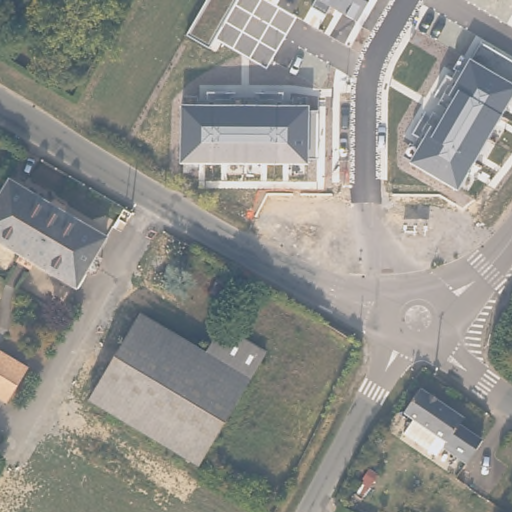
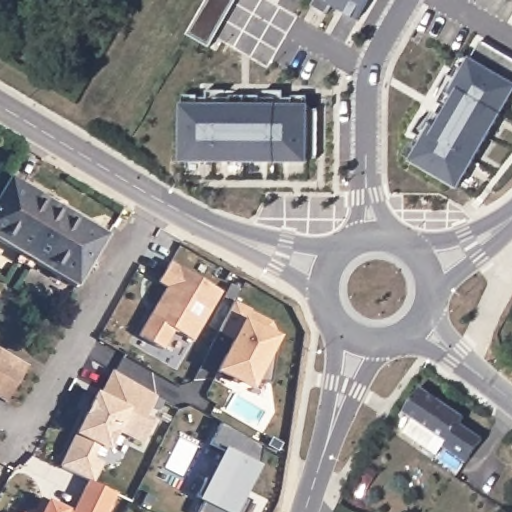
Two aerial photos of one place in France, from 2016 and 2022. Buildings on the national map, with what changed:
unchanged [(187,35),(208,0),(236,0),(208,47),(187,35)]
unchanged [(332,5),(326,14),(313,6),(316,0),(369,0),(357,20),(332,5)]
unchanged [(512,96),(458,189),(411,163),(430,125),(436,130),(456,97),(450,94),(472,59),(482,42),(512,61),(512,96)]
unchanged [(181,165),(182,104),(310,105),(310,111),(318,111),(317,156),(306,162),(181,165)]
unchanged [(93,273),(87,269),(75,288),(0,243),(0,189),(6,177),(48,202),(50,199),(57,198),(65,204),(66,207),(64,211),(106,236),(95,255),(102,258),(93,273)]
new [(193,341),(174,330),(163,350),(138,335),(166,287),(158,282),(169,262),(221,292),(193,341)]
demolished [(223,285),(218,296),(206,290),(212,278),(223,285)]
demolished [(172,422),(99,383),(134,322),(199,358),(214,330),(220,332),(172,422)]
demolished [(258,355),(195,470),(85,408),(99,383),(172,422),(220,332),(258,355)]
unchanged [(29,365),(24,374),(22,376),(8,401),(0,396),(0,349),(29,365)]
new [(145,420),(153,423),(143,443),(117,430),(108,448),(95,443),(83,470),(64,460),(96,395),(100,398),(113,371),(156,396),(145,420)]
unchanged [(466,422),(465,425),(487,440),(472,462),(450,448),(442,460),(409,438),(418,424),(408,417),(424,393),(466,422)]
new [(89,481),(115,494),(107,512),(74,512),(89,481)]
new [(47,502),(67,512),(42,512),(47,502)]

